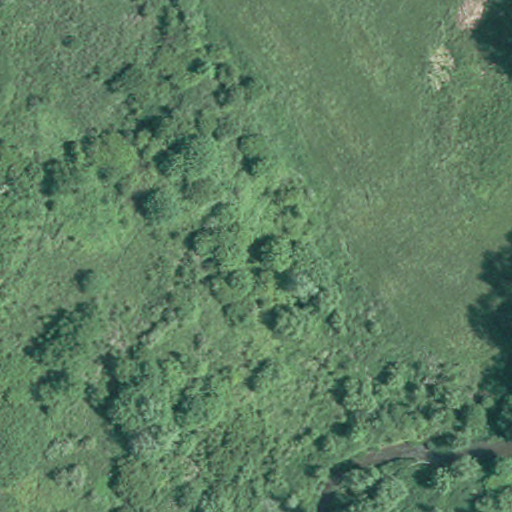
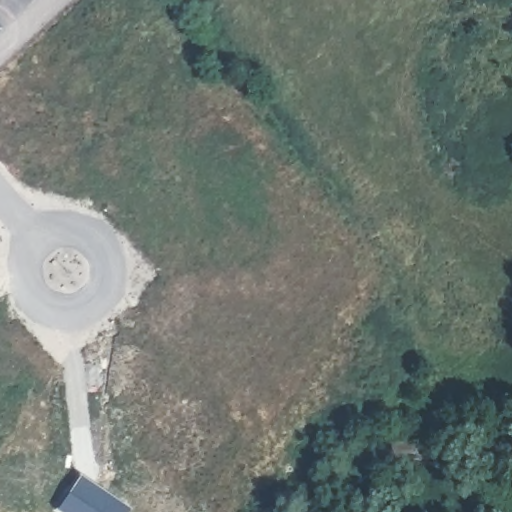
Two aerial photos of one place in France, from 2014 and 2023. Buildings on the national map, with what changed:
new [(128,511),(127,512),(65,512),(57,507),(78,475),(128,511)]

